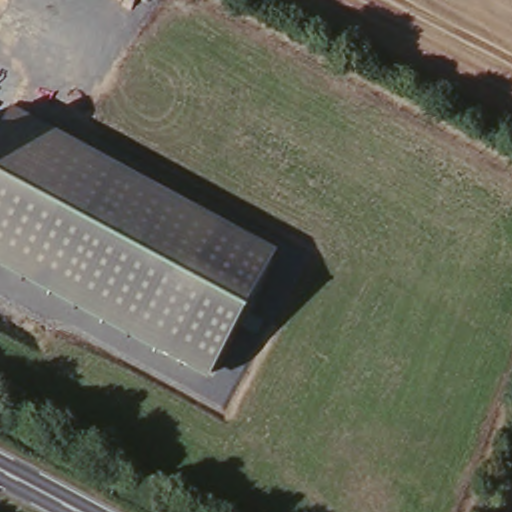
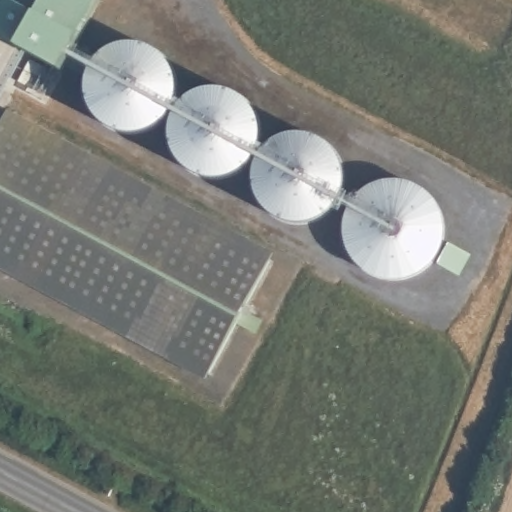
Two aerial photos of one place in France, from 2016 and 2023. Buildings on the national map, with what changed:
new [(38,20),(47,0),(84,0),(98,7),(77,48),(94,57),(83,79),(66,70),(58,86),(14,62),(18,51),(0,41),(0,0),(3,0),(38,20)]
new [(165,57),(177,74),(178,96),(176,108),(169,117),(157,127),(138,134),(121,134),(105,126),(93,114),(87,94),(87,82),(92,71),(102,54),(116,46),(130,43),(146,45),(165,57)]
new [(245,99),(257,112),(262,131),(261,146),(253,162),(240,174),(220,180),(198,176),(183,165),(173,152),(171,130),(175,114),(183,104),(192,95),(211,89),(230,90),(245,99)]
unchanged [(271,254),(203,380),(0,270),(0,124),(7,111),(271,254)]
new [(267,212),(259,200),(254,182),(258,162),(268,150),(282,138),(300,134),(317,137),(336,150),(344,165),(345,186),(339,204),(327,216),(311,224),(297,226),(282,222),(267,212)]
new [(424,188),(433,196),(444,211),(447,235),(441,254),(427,272),(409,280),(385,281),(369,276),(355,262),(345,241),(345,222),(350,206),(361,192),(377,184),(394,181),(409,182),(424,188)]

